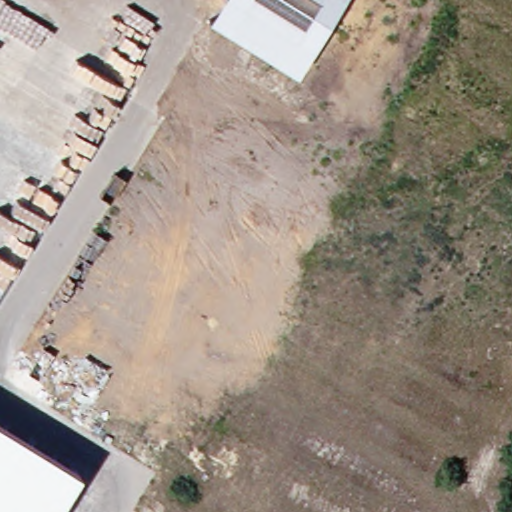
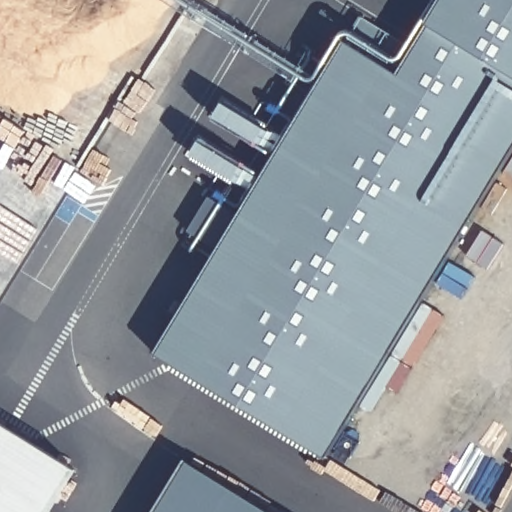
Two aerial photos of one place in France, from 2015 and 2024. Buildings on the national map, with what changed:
new [(155,347),(343,40),(408,79),(455,0),(512,0),(512,142),(325,448),(155,347)]
new [(51,512),(0,512),(0,420),(78,469),(51,512)]
new [(275,512),(157,512),(188,460),(275,512)]

